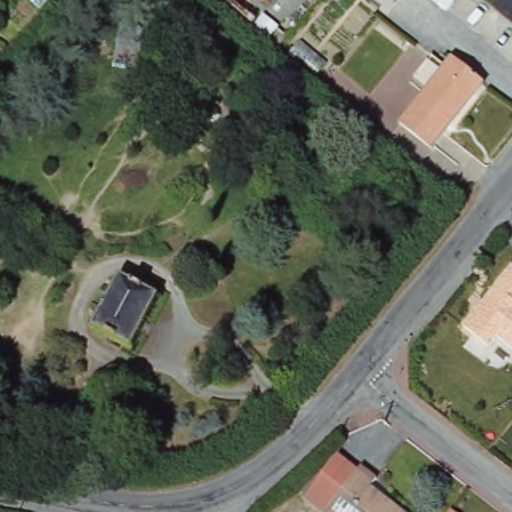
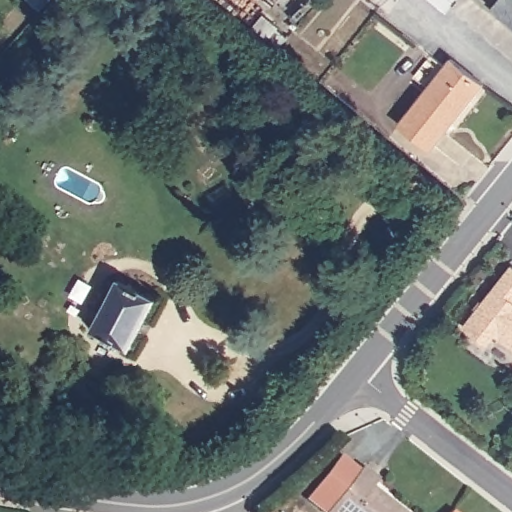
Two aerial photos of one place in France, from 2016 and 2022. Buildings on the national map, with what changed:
unchanged [(512,0),(512,25),(490,6),(495,0),(512,0)]
unchanged [(473,90),(430,143),(400,119),(442,66),(473,90)]
unchanged [(512,266),(512,349),(496,336),(487,347),(463,326),(512,266)]
unchanged [(154,301),(126,353),(91,334),(121,283),(154,301)]
unchanged [(356,471),(372,483),(363,495),(382,510),(380,512),(325,512),(356,471)]
unchanged [(389,508),(394,512),(386,512),(389,508)]

